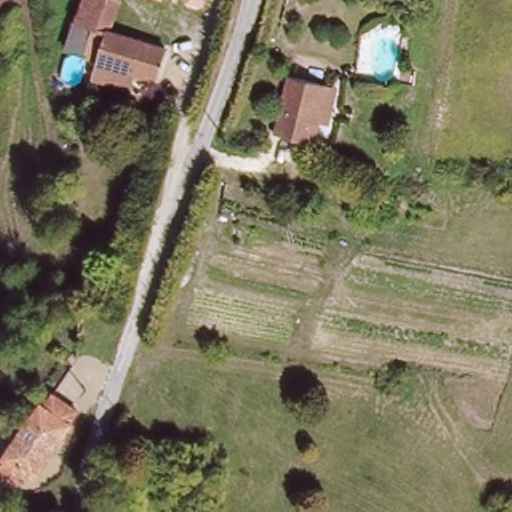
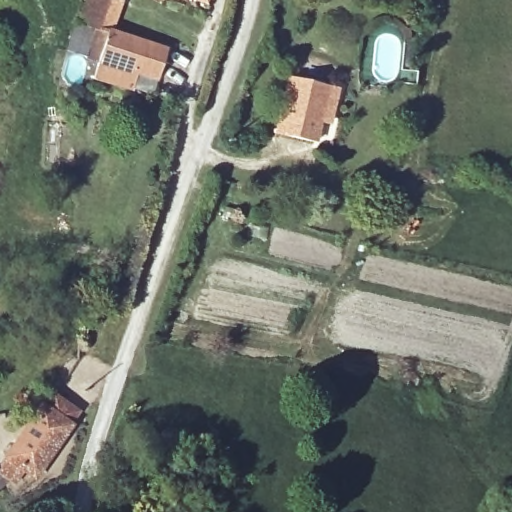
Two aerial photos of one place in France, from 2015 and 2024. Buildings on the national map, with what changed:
unchanged [(139,78),(131,93),(101,84),(106,68),(68,54),(88,0),(113,0),(127,5),(116,36),(169,56),(159,84),(139,78)]
unchanged [(195,0),(207,0),(206,4),(195,0)]
unchanged [(327,150),(284,140),(298,85),(338,93),(327,150)]
unchanged [(45,412),(54,419),(64,406),(84,421),(38,484),(29,478),(23,487),(6,476),(13,462),(45,412)]

